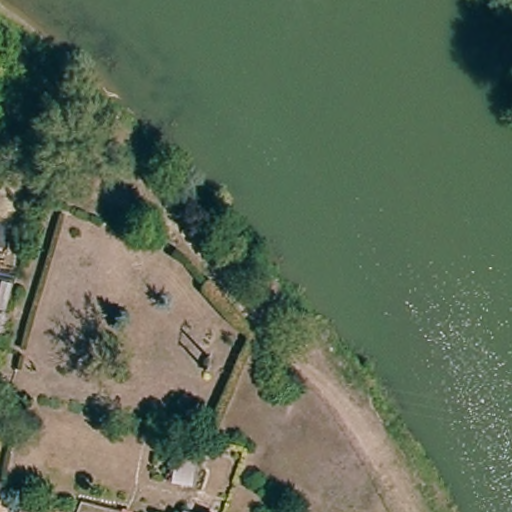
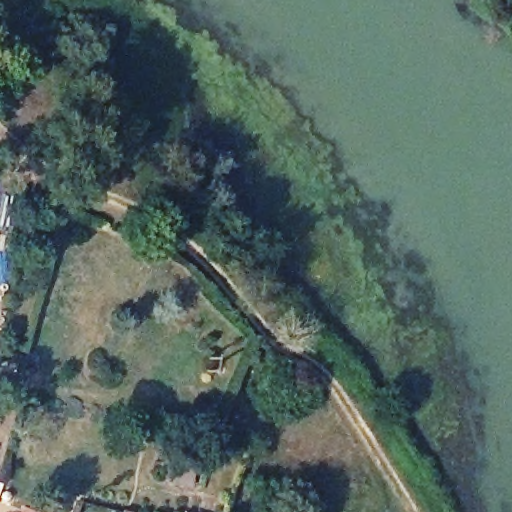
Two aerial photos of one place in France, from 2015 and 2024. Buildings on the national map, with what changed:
unchanged [(191,462),(188,486),(169,484),(172,458),(191,462)]
unchanged [(26,511),(29,512),(26,512),(26,511)]

